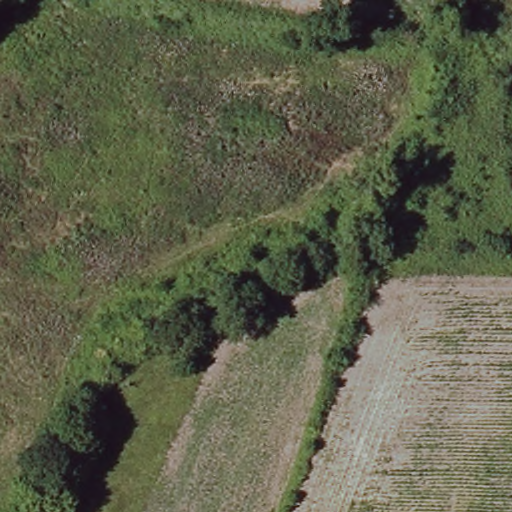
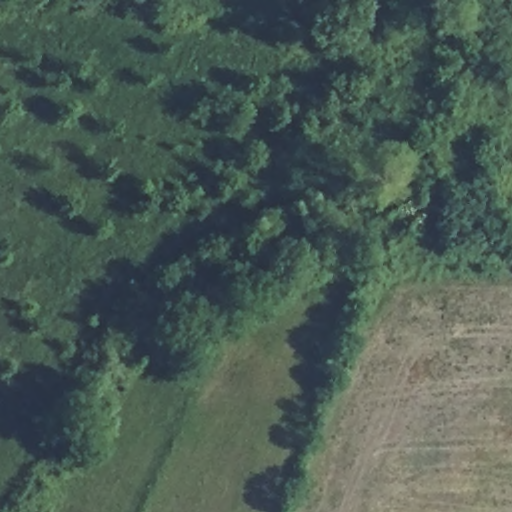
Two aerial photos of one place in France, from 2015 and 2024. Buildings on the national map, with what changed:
[]

